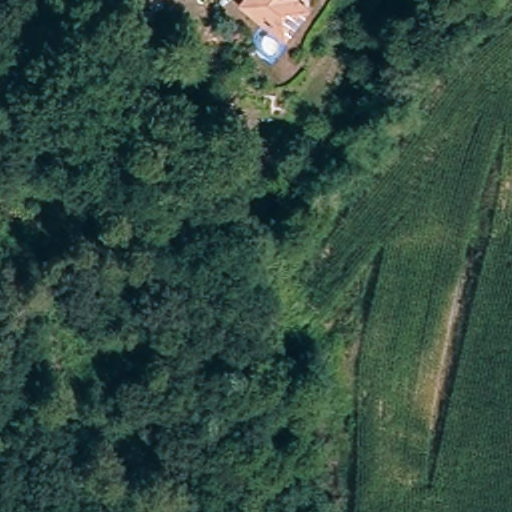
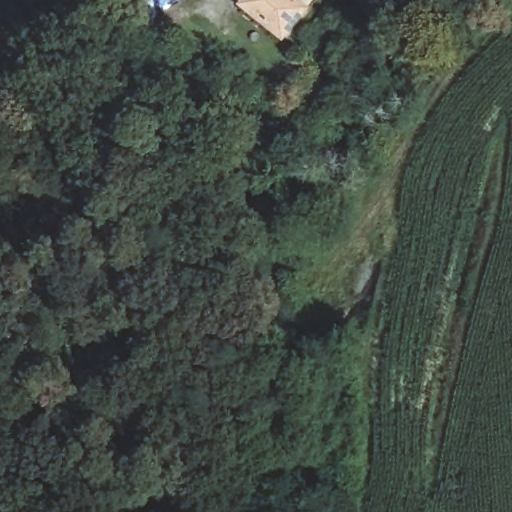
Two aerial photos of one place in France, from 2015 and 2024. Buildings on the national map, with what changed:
unchanged [(246,0),(297,0),(295,2),(305,15),(283,37),(245,2),(246,0)]
unchanged [(35,136),(26,136),(4,133),(6,114),(28,116),(36,117),(35,136)]

